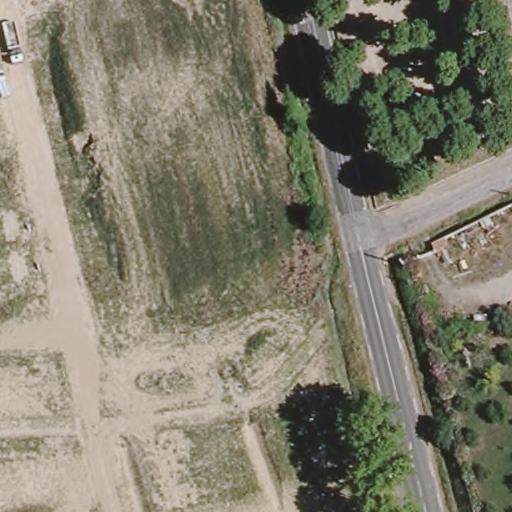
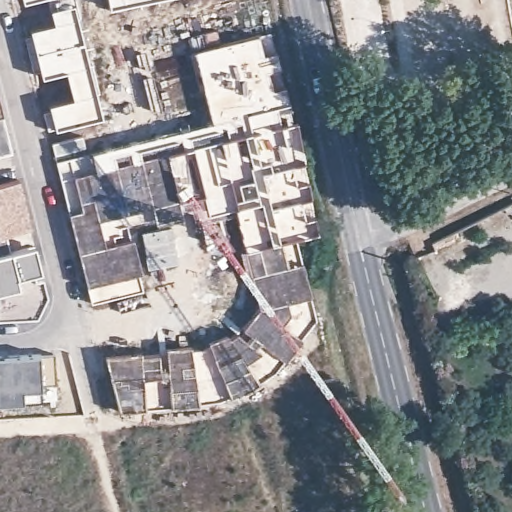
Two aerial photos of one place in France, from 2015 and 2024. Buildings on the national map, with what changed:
new [(23,2),(22,0),(31,0),(23,2)]
new [(101,117),(54,128),(48,103),(70,97),(64,71),(40,77),(28,29),(54,22),(48,0),(71,0),(101,117)]
new [(109,9),(107,0),(151,0),(109,9)]
new [(164,351),(164,346),(191,344),(191,348),(209,344),(208,340),(226,333),(228,337),(242,326),(259,306),(250,274),(246,276),(239,250),(246,248),(235,207),(196,216),(192,197),(179,200),(183,217),(156,224),(154,217),(127,224),(130,239),(133,237),(141,272),(139,272),(143,291),(90,303),(86,285),(68,213),(55,161),(89,154),(211,123),(192,50),(271,31),(295,120),(318,232),(294,236),(309,294),(308,295),(314,316),(299,336),(301,337),(283,359),(275,369),(259,381),(259,382),(229,396),(219,400),(198,402),(199,404),(118,410),(106,366),(105,354),(142,352),(142,356),(159,354),(164,351)]
new [(0,115),(8,149),(0,152),(0,115)]
new [(28,222),(18,225),(18,231),(8,234),(11,251),(34,245),(41,272),(33,274),(35,281),(43,278),(47,294),(34,316),(0,317),(0,183),(17,178),(26,211),(28,222)]
new [(55,383),(40,383),(41,401),(0,404),(0,359),(53,354),(55,383)]

